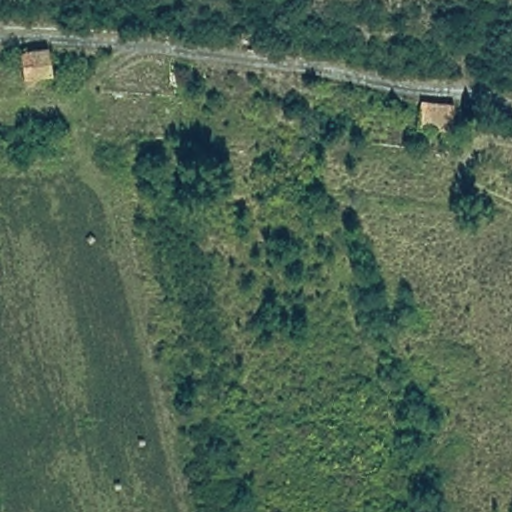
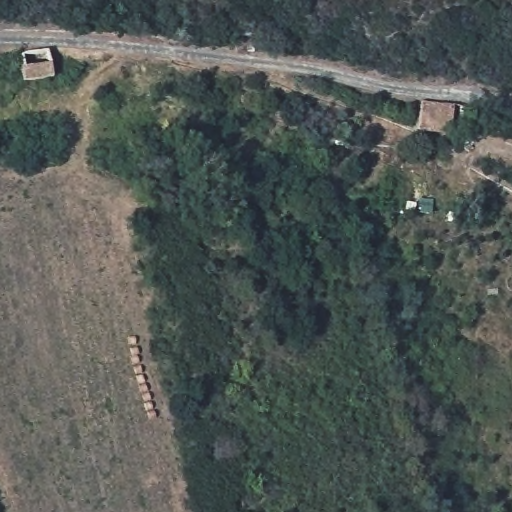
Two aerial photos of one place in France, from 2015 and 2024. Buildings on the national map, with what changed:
unchanged [(17,50),(50,46),(54,77),(22,79),(17,50)]
unchanged [(420,101),(454,100),(455,123),(420,125),(420,101)]

